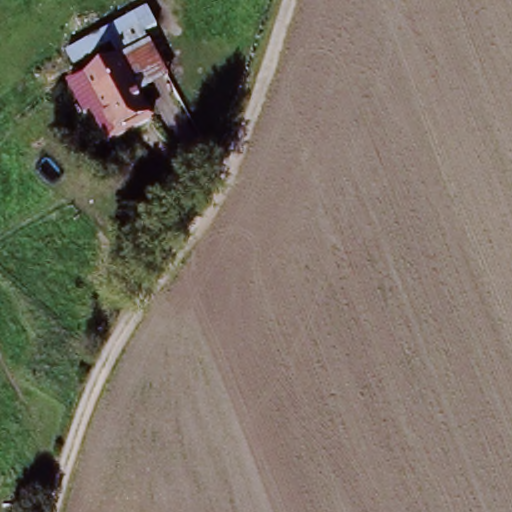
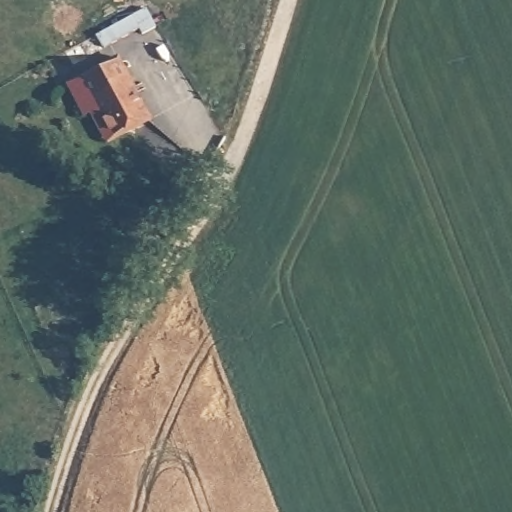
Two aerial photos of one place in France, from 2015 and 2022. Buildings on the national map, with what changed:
unchanged [(183,107),(109,142),(79,80),(64,52),(132,13),(183,107)]

